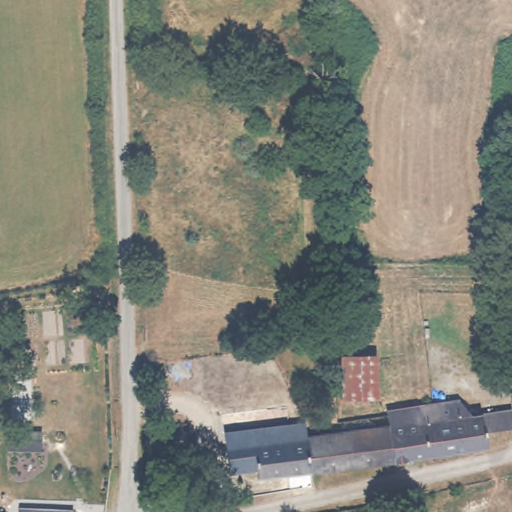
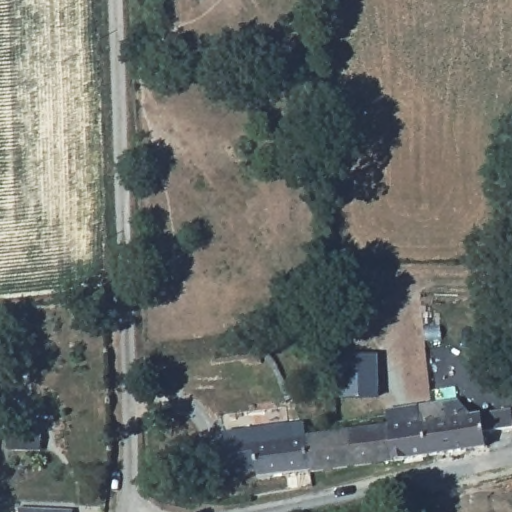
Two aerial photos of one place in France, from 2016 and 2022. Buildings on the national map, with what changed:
unchanged [(376,356),(378,397),(344,400),(342,357),(376,356)]
unchanged [(461,393),(464,411),(509,405),(512,422),(486,426),(488,442),(395,455),(392,421),(391,416),(390,405),(461,393)]
unchanged [(309,432),(392,421),(395,455),(260,474),(257,440),(277,437),(276,427),(275,425),(308,420),(308,422),(309,432)]
unchanged [(75,507),(75,512),(21,512),(22,503),(57,506),(75,507)]

